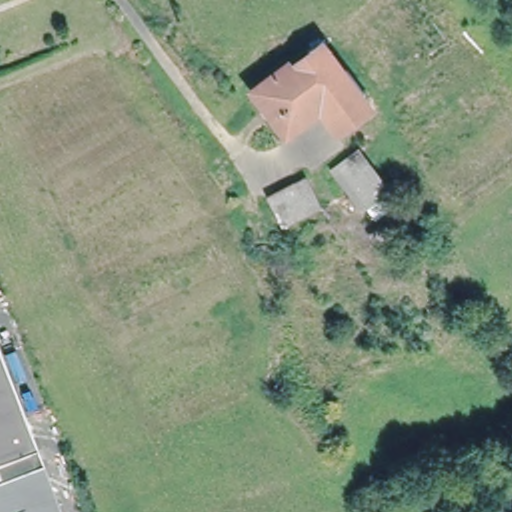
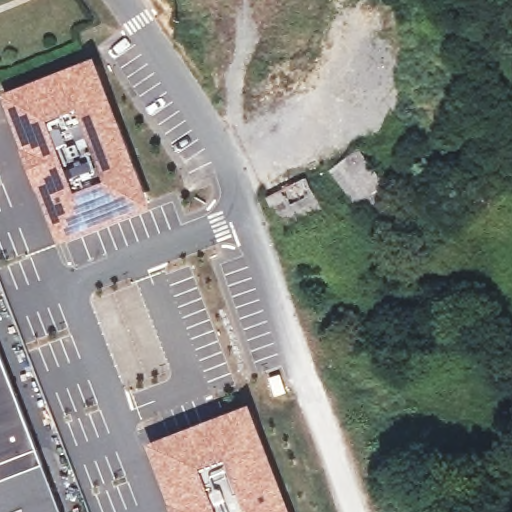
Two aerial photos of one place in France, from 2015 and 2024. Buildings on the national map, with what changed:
unchanged [(290,65),(296,70),(325,48),(372,109),(342,132),(324,110),(290,136),(256,92),(290,65)]
new [(152,207),(61,244),(2,95),(95,57),(152,207)]
unchanged [(407,210),(400,215),(393,207),(377,219),(372,210),(366,214),(336,171),(362,150),(407,210)]
unchanged [(286,235),(282,228),(267,197),(305,178),(321,209),(324,215),(286,235)]
unchanged [(24,512),(22,509),(15,512),(0,512),(0,353),(62,512),(24,512)]
new [(173,512),(147,445),(251,405),(292,512),(173,512)]

